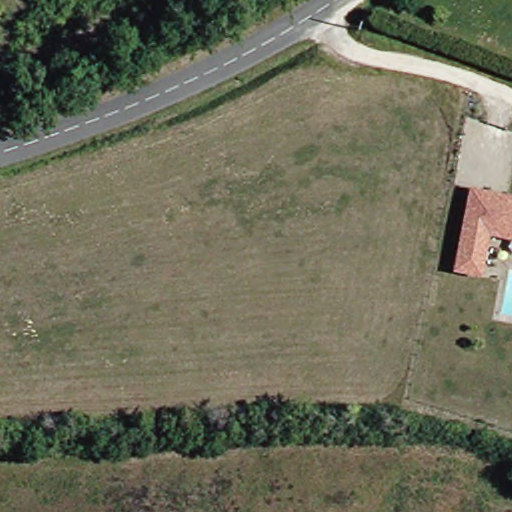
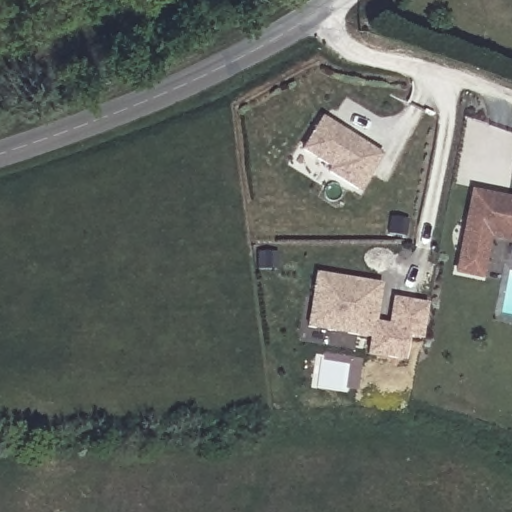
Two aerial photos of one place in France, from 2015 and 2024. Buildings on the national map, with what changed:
new [(360,192),(326,174),(329,168),(302,152),(320,119),(382,155),(360,192)]
unchanged [(483,279),(455,274),(469,188),(512,196),(512,242),(490,238),(483,279)]
new [(373,338),(306,326),(315,276),(381,284),(373,338)]
new [(375,322),(388,324),(392,298),(428,303),(423,339),(409,337),(405,362),(366,356),(369,338),(373,338),(375,322)]

